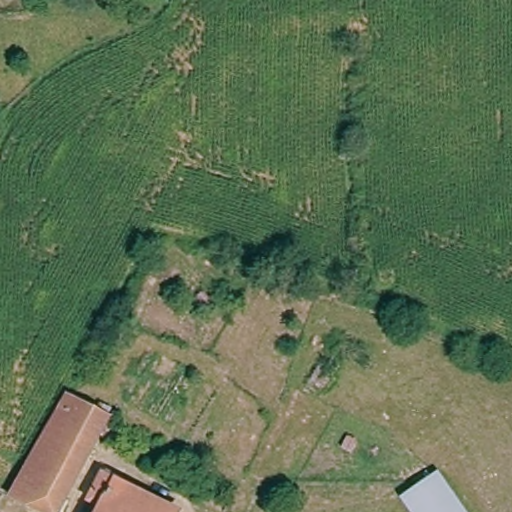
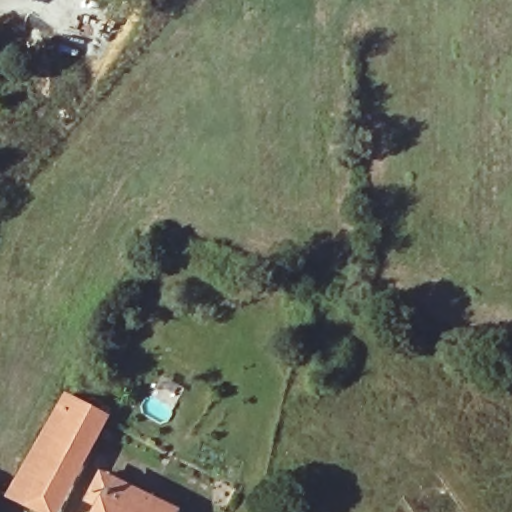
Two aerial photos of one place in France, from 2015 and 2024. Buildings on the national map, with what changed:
unchanged [(67,512),(50,512),(19,497),(73,397),(114,418),(67,512)]
unchanged [(105,506),(93,500),(106,476),(179,512),(102,512),(105,506)]
demolished [(405,500),(440,476),(465,512),(414,512),(405,500)]
unchanged [(3,496),(0,502),(0,494),(3,496)]

